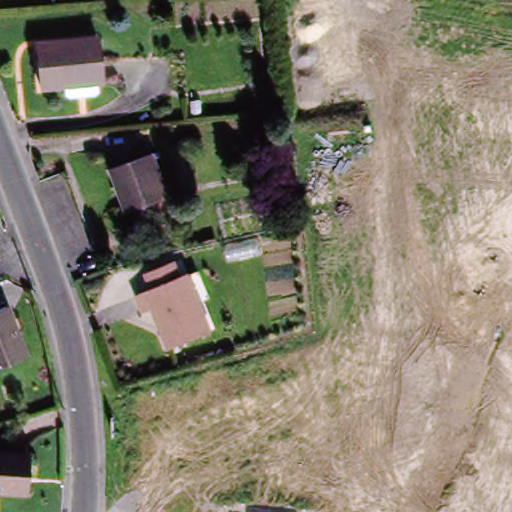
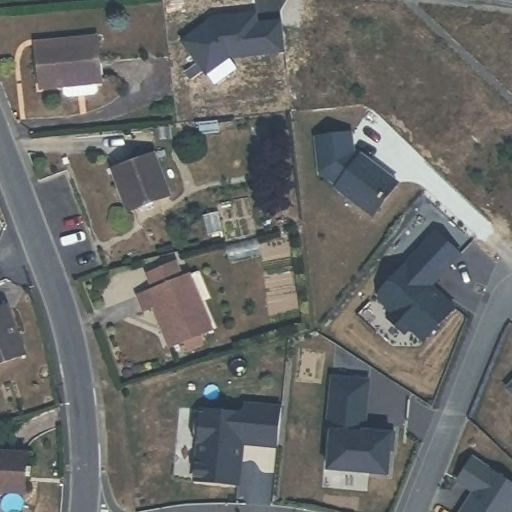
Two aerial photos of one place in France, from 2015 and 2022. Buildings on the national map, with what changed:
unchanged [(92,90),(70,92),(65,87),(65,80),(41,81),(38,39),(99,35),(102,77),(96,78),(96,85),(92,90)]
new [(337,185),(319,172),(315,137),(350,133),(352,153),(358,157),(337,185)]
unchanged [(152,154),(167,195),(126,210),(111,169),(152,154)]
new [(337,185),(358,157),(360,155),(397,182),(372,215),(335,188),(337,185)]
new [(380,292),(436,232),(460,255),(429,286),(440,296),(441,295),(454,308),(423,341),(410,328),(405,333),(388,318),(393,312),(376,296),(380,292)]
unchanged [(215,328),(174,345),(168,331),(170,330),(160,304),(147,309),(140,293),(192,272),(215,328)]
unchanged [(0,310),(2,309),(16,342),(0,349),(0,310)]
new [(331,376),(368,380),(363,430),(393,433),(392,450),(390,450),(387,475),(326,468),(330,431),(326,430),(331,376)]
new [(507,388),(512,383),(512,393),(507,388)]
new [(193,418),(199,414),(200,414),(201,409),(245,413),(245,404),(281,407),(277,446),(242,443),(242,445),(239,447),(238,460),(241,460),(239,485),(195,480),(198,441),(196,441),(191,436),(193,418)]
unchanged [(31,488),(0,491),(0,449),(27,447),(31,488)]
new [(474,491),(457,480),(471,457),(512,484),(512,511),(511,512),(461,512),(474,491)]

